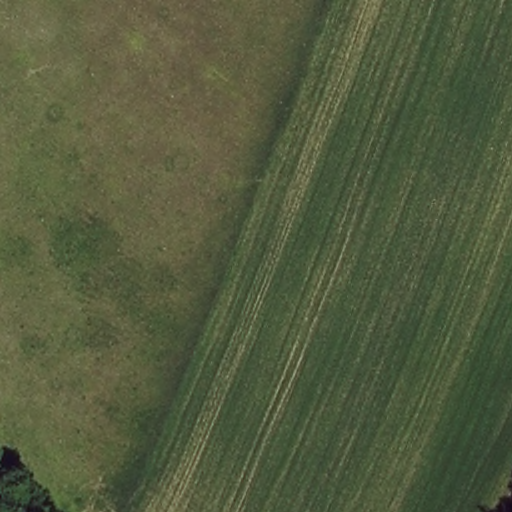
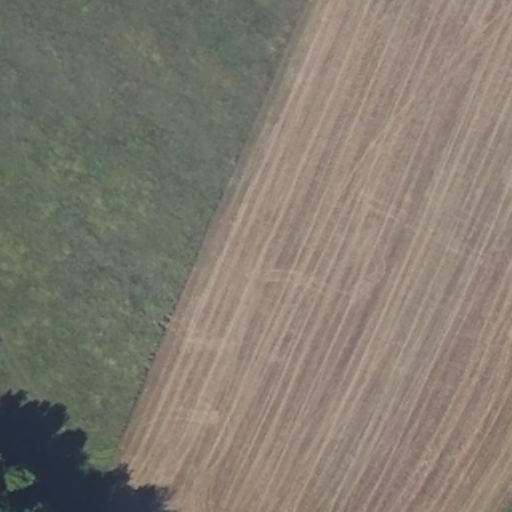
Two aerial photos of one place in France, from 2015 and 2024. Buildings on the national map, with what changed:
[]

